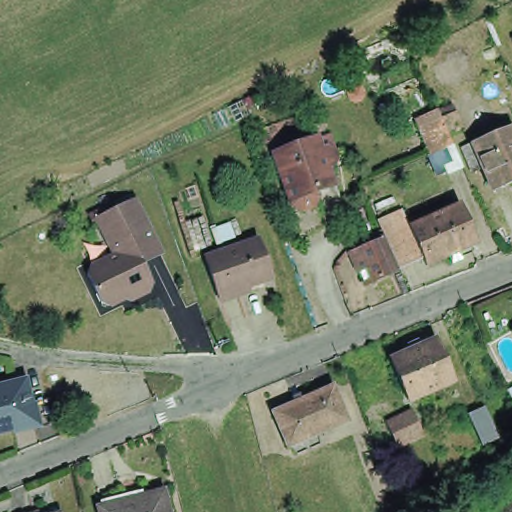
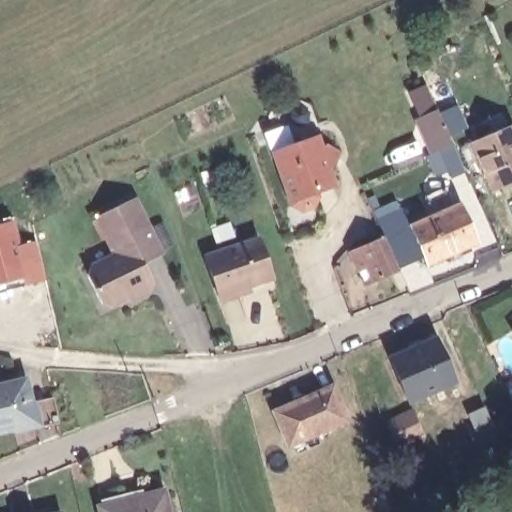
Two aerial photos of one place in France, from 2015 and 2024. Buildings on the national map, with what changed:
unchanged [(446,136),(433,142),(425,123),(438,118),(446,136)]
unchanged [(472,174),(463,152),(473,147),(511,131),(512,133),(512,187),(493,194),(483,169),(472,174)]
unchanged [(326,159),(329,168),(325,174),(318,176),(325,196),(307,203),(308,207),(303,219),(295,221),(285,216),(266,164),(308,149),(313,161),(320,158),(326,159)]
unchanged [(470,186),(465,188),(461,180),(467,177),(470,186)]
unchanged [(108,312),(101,309),(90,283),(92,274),(117,263),(105,237),(107,236),(101,225),(115,219),(113,217),(135,206),(160,261),(143,269),(153,290),(151,296),(127,307),(125,304),(108,312)]
unchanged [(419,263),(405,231),(455,208),(473,247),(422,270),(419,263)]
unchanged [(373,226),(397,215),(405,231),(419,263),(395,274),(382,244),(378,236),(373,226)]
new [(20,244),(37,240),(48,280),(23,286),(21,280),(0,287),(0,220),(14,217),(20,244)]
unchanged [(254,241),(263,268),(266,277),(260,280),(234,288),(235,293),(215,299),(202,257),(254,241)]
unchanged [(347,260),(353,257),(382,244),(395,274),(367,287),(361,275),(355,279),(347,260)]
unchanged [(391,366),(437,346),(453,385),(408,405),(391,366)]
unchanged [(0,436),(0,392),(22,387),(32,428),(0,436)]
unchanged [(348,425),(316,440),(320,449),(297,459),(293,450),(290,452),(274,418),(333,391),(348,425)]
unchanged [(485,410),(497,436),(481,443),(470,417),(485,410)]
unchanged [(398,448),(393,435),(388,423),(412,413),(417,424),(423,437),(398,448)]
unchanged [(120,499),(122,508),(162,498),(166,512),(102,512),(100,504),(120,499)]

